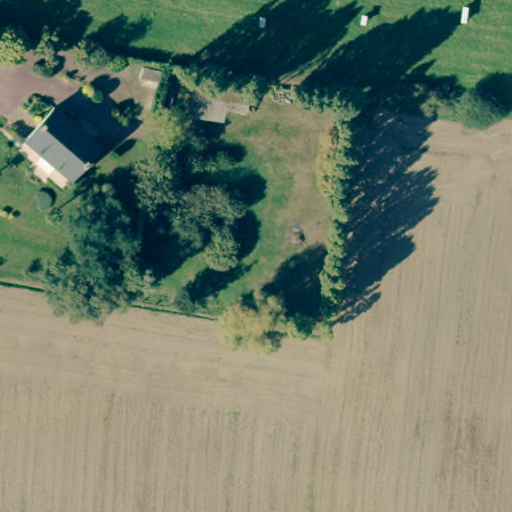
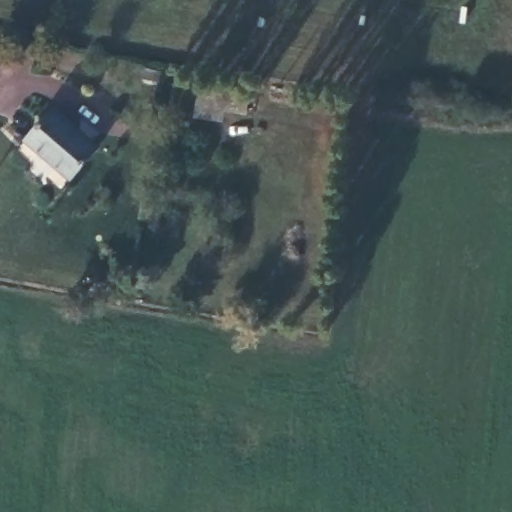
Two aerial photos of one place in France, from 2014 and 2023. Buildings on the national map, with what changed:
unchanged [(54,108),(97,147),(71,177),(27,137),(54,108)]

